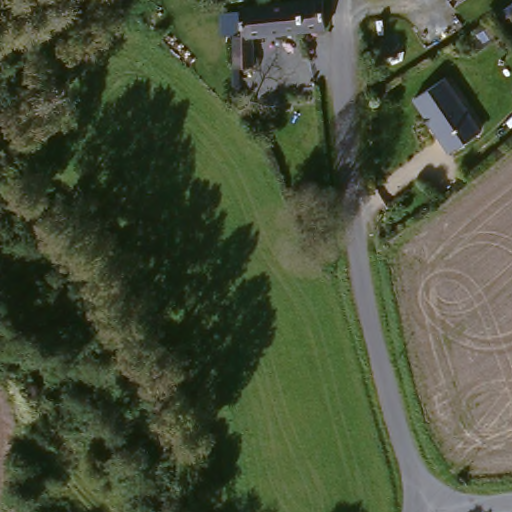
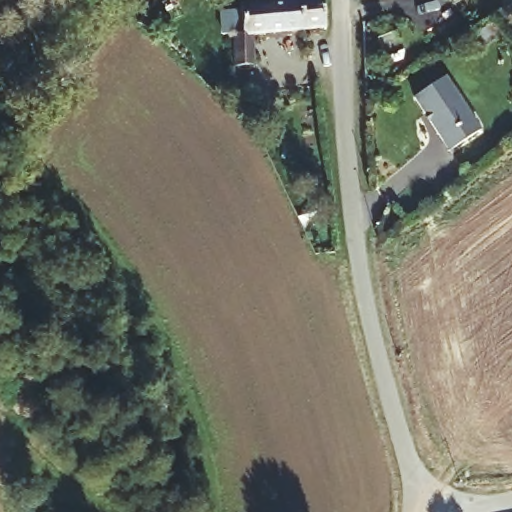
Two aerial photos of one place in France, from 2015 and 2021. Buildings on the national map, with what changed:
unchanged [(452,0),(458,0),(454,3),(452,0)]
unchanged [(306,35),(254,41),(254,70),(234,72),(234,40),(242,39),(241,11),(323,1),(326,34),(306,35)]
unchanged [(441,81),(476,135),(446,155),(409,102),(441,81)]

